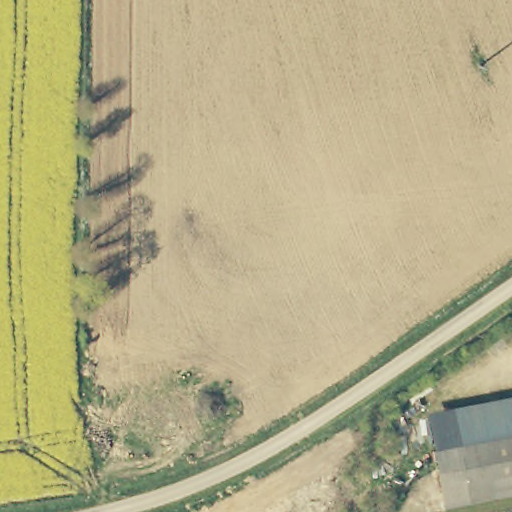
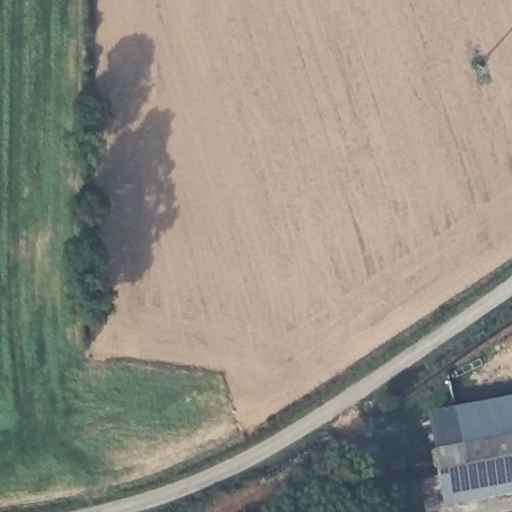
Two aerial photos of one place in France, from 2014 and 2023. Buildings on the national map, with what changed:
unchanged [(512,492),(442,505),(431,450),(426,412),(512,395),(512,492)]

